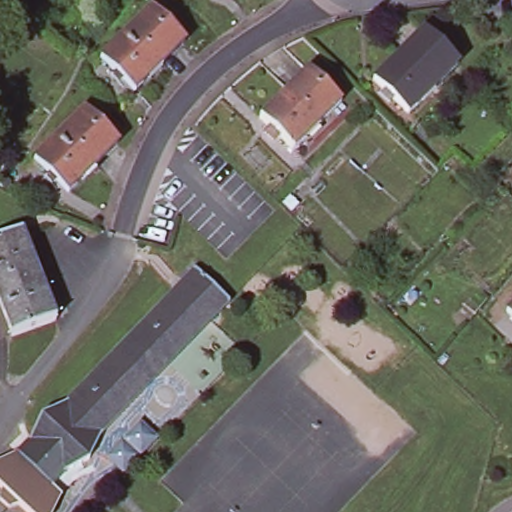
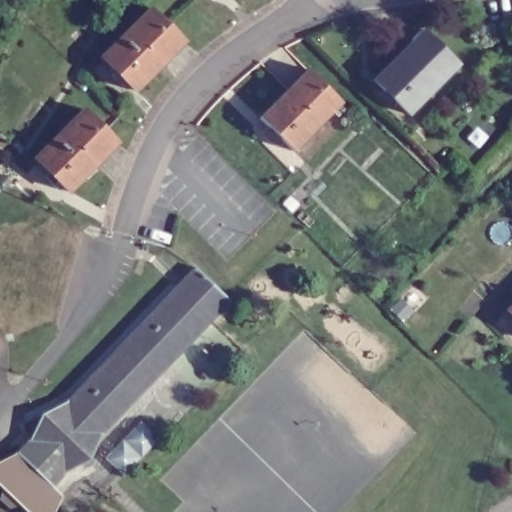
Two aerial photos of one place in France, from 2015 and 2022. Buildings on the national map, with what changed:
unchanged [(182,40),(134,87),(101,54),(150,7),(182,40)]
unchanged [(420,29),(454,62),(406,110),(372,77),(420,29)]
unchanged [(342,106),(294,154),(260,121),(308,72),(342,106)]
unchanged [(117,142),(69,191),(34,156),(82,107),(117,142)]
demolished [(56,318),(12,336),(0,305),(0,236),(21,227),(56,318)]
unchanged [(230,304),(101,438),(89,462),(62,476),(52,488),(17,456),(29,443),(41,417),(69,402),(196,272),(230,304)]
unchanged [(508,309),(512,305),(512,313),(508,309)]
unchanged [(54,512),(33,512),(23,502),(13,506),(5,498),(7,488),(0,482),(0,465),(17,456),(52,488),(62,498),(54,512)]

